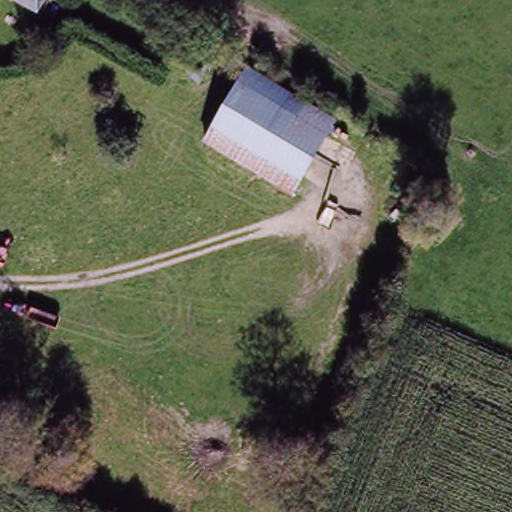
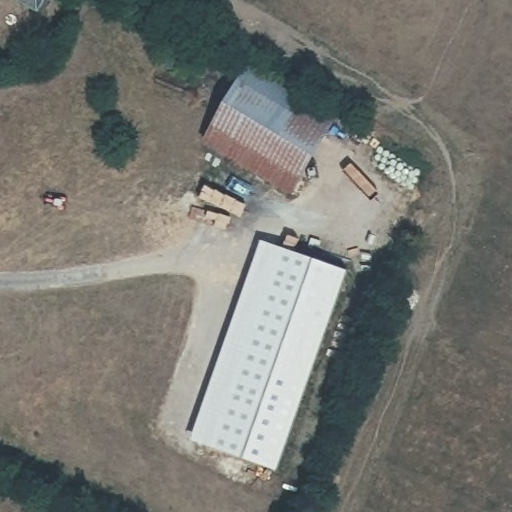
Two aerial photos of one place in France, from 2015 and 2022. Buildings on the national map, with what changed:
unchanged [(19,0),(54,0),(46,14),(19,0)]
unchanged [(161,62),(174,42),(209,61),(196,81),(161,62)]
unchanged [(340,120),(297,195),(205,142),(248,67),(340,120)]
new [(346,272),(277,468),(192,441),(262,243),(346,272)]

